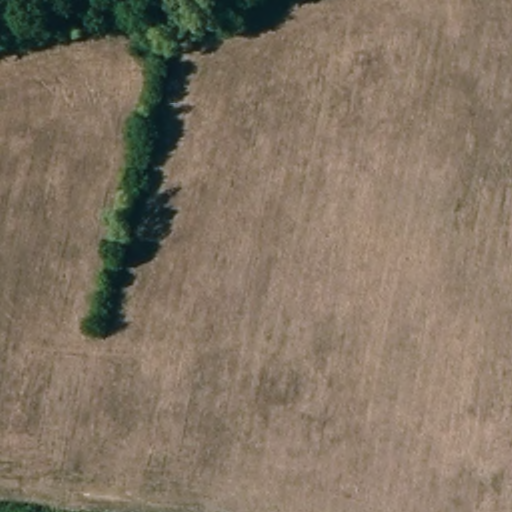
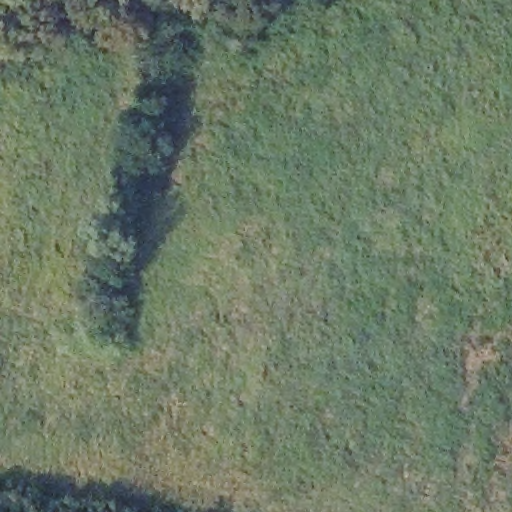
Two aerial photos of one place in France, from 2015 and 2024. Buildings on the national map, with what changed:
[]

